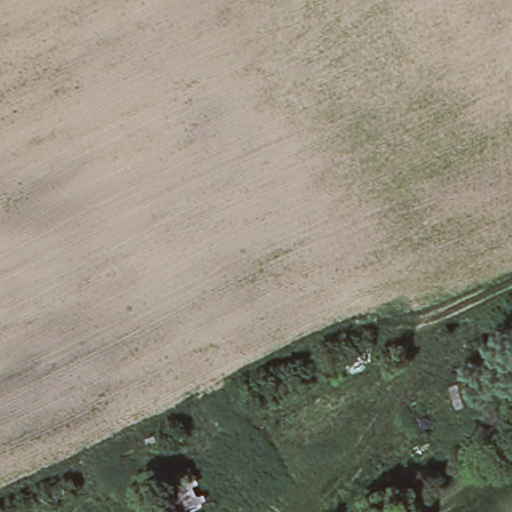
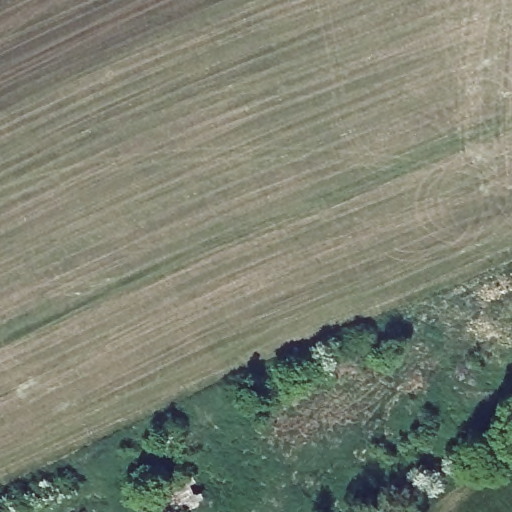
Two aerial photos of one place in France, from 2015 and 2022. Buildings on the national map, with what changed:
unchanged [(212,512),(174,512),(162,484),(191,472),(212,512)]

